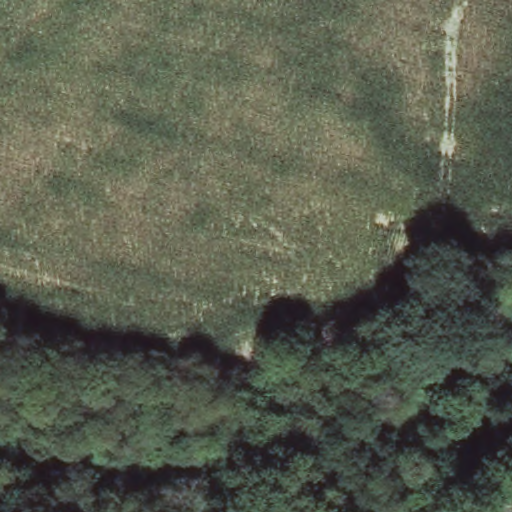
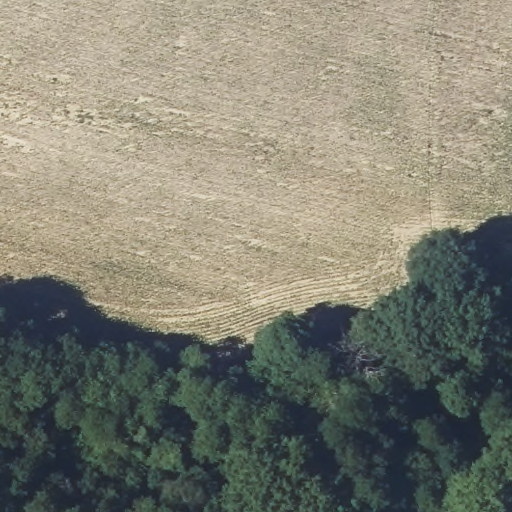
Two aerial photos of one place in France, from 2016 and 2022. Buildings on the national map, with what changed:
[]

